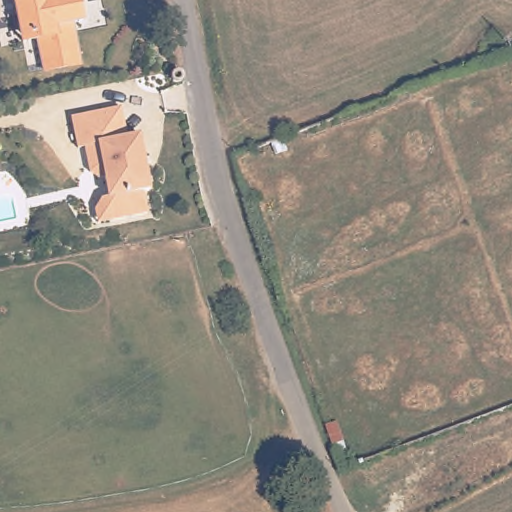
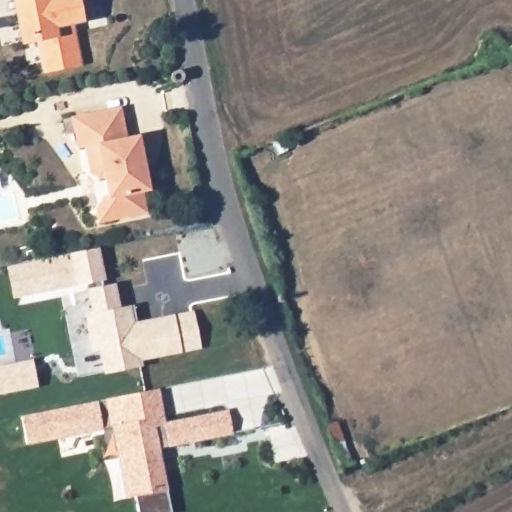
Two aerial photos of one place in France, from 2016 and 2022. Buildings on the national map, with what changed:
unchanged [(72,23),(80,57),(81,63),(45,71),(44,64),(39,39),(30,41),(24,42),(15,0),(78,0),(80,14),(82,21),(72,23)]
unchanged [(180,71),(182,72),(183,73),(184,75),(184,76),(184,78),(183,79),(182,81),(181,81),(180,82),(179,83),(177,83),(175,82),(174,81),(173,80),(172,79),(172,78),(171,76),(172,75),(172,73),(174,72),(175,71),(176,71),(178,71),(180,71)]
unchanged [(93,211),(100,199),(106,198),(102,178),(96,179),(87,174),(82,147),(75,149),(69,117),(103,110),(118,108),(124,138),(137,136),(148,191),(140,192),(145,214),(110,221),(96,224),(93,211)]
new [(7,266),(70,253),(101,246),(107,281),(77,285),(14,298),(7,266)]
new [(84,313),(92,311),(87,288),(116,283),(121,306),(134,304),(137,321),(195,311),(201,349),(142,360),(144,366),(104,373),(99,349),(92,351),(84,313)]
new [(34,358),(39,387),(0,394),(0,365),(34,358)]
new [(107,399),(161,388),(165,422),(229,411),(233,434),(169,446),(160,447),(169,489),(166,489),(171,512),(138,512),(135,496),(126,497),(112,427),(26,445),(21,415),(107,399)]

